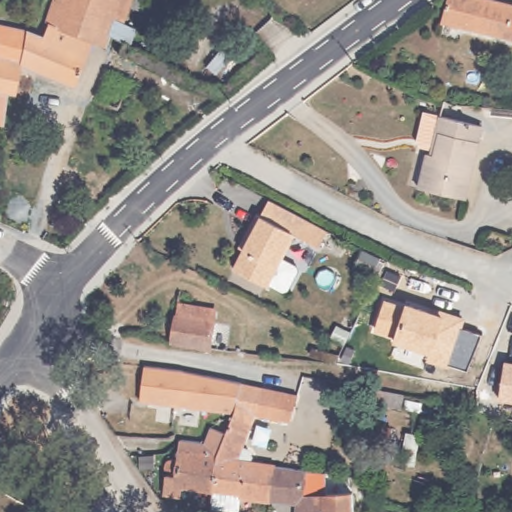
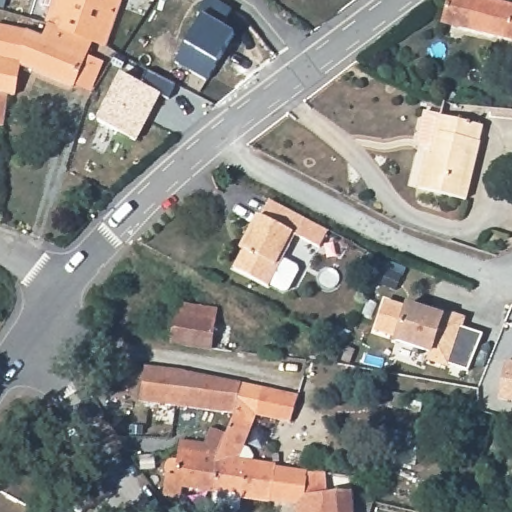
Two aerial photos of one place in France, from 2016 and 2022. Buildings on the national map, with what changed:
unchanged [(133,0),(129,12),(118,9),(106,42),(93,38),(74,83),(20,62),(15,93),(9,92),(5,123),(0,121),(0,21),(34,28),(44,31),(54,0),(133,0)]
new [(202,15),(196,13),(203,0),(216,0),(233,10),(222,25),(234,33),(217,61),(207,81),(173,61),(185,44),(202,15)]
unchanged [(442,21),(448,0),(488,0),(512,6),(512,40),(442,21)]
new [(120,71),(140,81),(147,69),(176,85),(168,99),(161,94),(137,141),(96,119),(120,71)]
unchanged [(482,126),(478,141),(479,141),(466,200),(419,187),(428,153),(430,154),(436,132),(439,116),(482,126)]
unchanged [(328,231),(319,247),(295,234),(290,243),(281,261),(274,274),(268,285),(234,267),(239,256),(247,243),(249,239),(244,237),(258,212),(262,215),(269,199),(329,231),(328,231)]
unchanged [(452,363),(449,368),(428,360),(431,352),(397,342),(399,335),(378,330),(388,300),(409,305),(411,302),(466,316),(464,328),(484,334),(469,370),(452,363)]
unchanged [(214,311),(209,349),(172,343),(178,304),(214,311)]
unchanged [(310,355),(313,348),(339,355),(338,363),(310,355)]
unchanged [(502,401),(507,360),(512,361),(512,402),(502,401)]
unchanged [(239,405),(237,411),(141,401),(146,366),(169,369),(185,370),(185,372),(242,384),(239,405)]
unchanged [(234,493),(213,491),(217,458),(237,411),(239,405),(242,384),(269,389),(299,396),(291,422),(280,420),(261,417),(257,416),(237,460),(277,465),(271,500),(234,496),(234,493)]
unchanged [(417,465),(408,464),(407,472),(386,469),(389,429),(420,433),(417,465)]
unchanged [(213,491),(183,487),(182,496),(166,494),(169,477),(166,474),(165,472),(164,469),(165,466),(166,463),(166,462),(169,460),(171,459),(174,459),(177,460),(179,461),(179,462),(181,453),(217,458),(213,491)]
unchanged [(354,512),(298,512),(298,504),(271,500),(277,465),(327,472),(328,495),(354,494),(354,512)]

